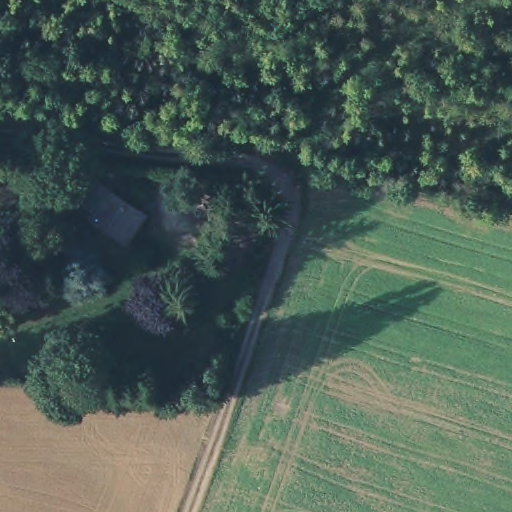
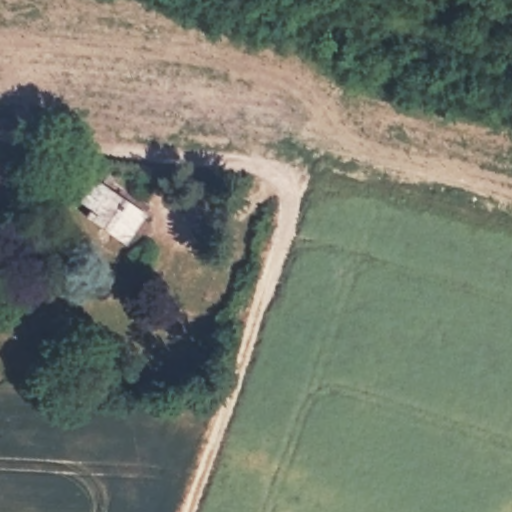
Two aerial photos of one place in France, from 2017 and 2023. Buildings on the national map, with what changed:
unchanged [(96,196),(138,227),(123,250),(79,217),(96,196)]

